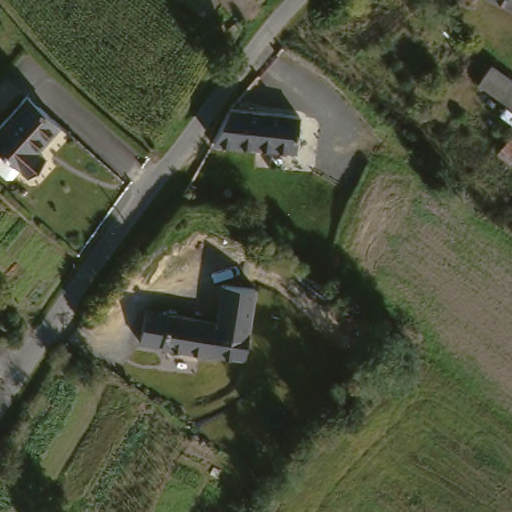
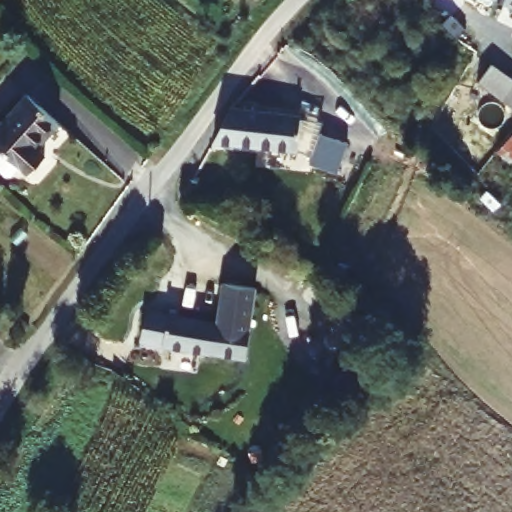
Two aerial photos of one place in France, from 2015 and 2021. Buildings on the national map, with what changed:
unchanged [(508,0),(512,0),(512,2),(508,0)]
unchanged [(512,73),(512,103),(483,84),(500,66),(512,73)]
unchanged [(64,117),(39,143),(50,153),(33,170),(0,138),(0,121),(32,87),(64,117)]
unchanged [(307,116),(300,149),(217,139),(240,106),(307,116)]
new [(310,158),(320,131),(348,141),(336,177),(307,167),(310,158)]
unchanged [(222,287),(258,295),(250,357),(213,357),(210,352),(219,320),(222,287)]
unchanged [(164,342),(165,337),(150,333),(152,316),(165,318),(167,308),(219,320),(210,352),(164,342)]

